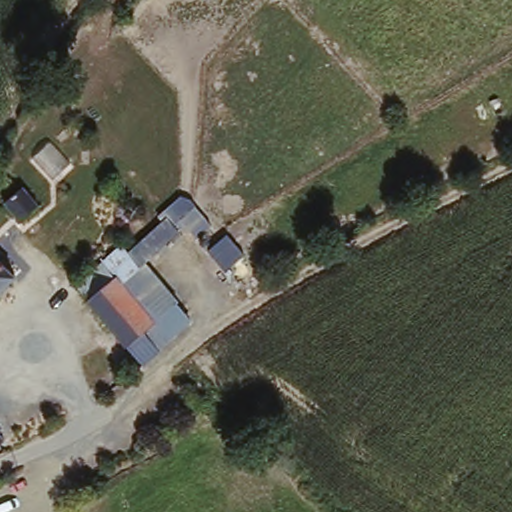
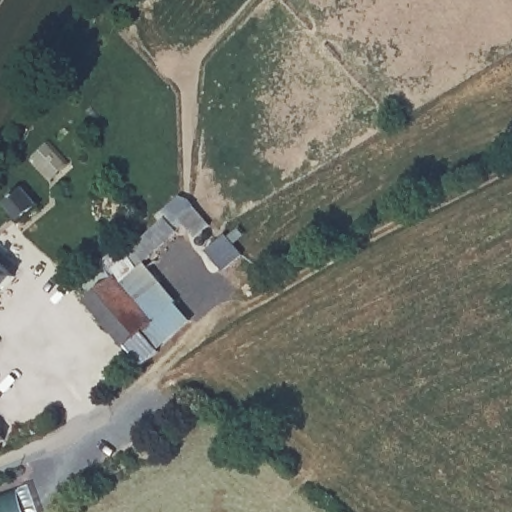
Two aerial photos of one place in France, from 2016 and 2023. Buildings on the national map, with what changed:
unchanged [(18,194),(25,188),(40,205),(21,223),(4,207),(9,201),(0,191),(10,184),(18,194)]
unchanged [(164,216),(160,219),(158,216),(180,197),(193,201),(212,225),(197,237),(186,224),(176,231),(164,216)]
unchanged [(117,241),(124,252),(164,216),(176,231),(144,261),(188,319),(140,363),(73,285),(117,241)]
unchanged [(247,259),(225,275),(205,249),(226,233),(247,259)]
unchanged [(14,278),(0,293),(0,265),(14,278)]
unchanged [(17,450),(0,456),(0,434),(17,450)]

